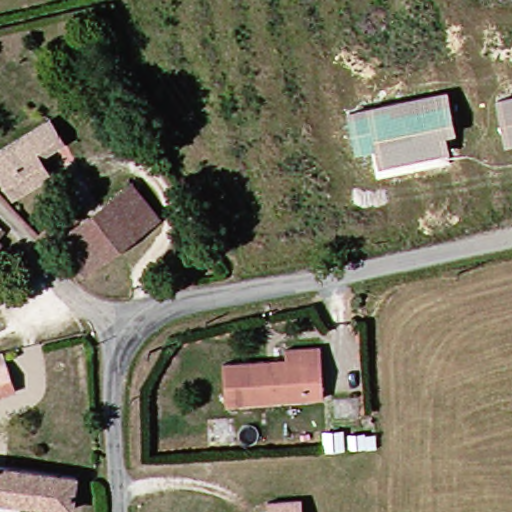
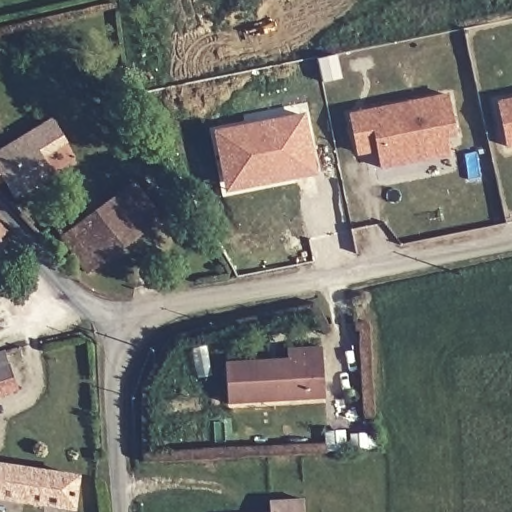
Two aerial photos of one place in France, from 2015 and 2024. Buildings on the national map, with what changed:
unchanged [(456,138),(445,141),(448,156),(377,169),(374,152),(355,157),(347,114),(446,94),(456,138)]
unchanged [(496,102),(512,99),(512,148),(503,150),(496,102)]
new [(318,176),(225,194),(213,130),(306,112),(318,176)]
unchanged [(42,118),(61,144),(38,162),(49,176),(16,200),(10,193),(0,199),(0,148),(42,118)]
unchanged [(161,219),(80,275),(54,239),(136,184),(161,219)]
unchanged [(0,242),(0,231),(5,238),(0,242)]
unchanged [(9,256),(0,262),(0,243),(9,256)]
unchanged [(302,384),(302,400),(225,400),(226,362),(284,362),(285,348),(318,351),(318,366),(319,383),(302,384)]
unchanged [(11,377),(0,380),(0,357),(6,355),(11,377)]
unchanged [(76,479),(73,512),(0,501),(0,467),(76,479)]
unchanged [(301,507),(302,512),(266,512),(266,509),(301,507)]

